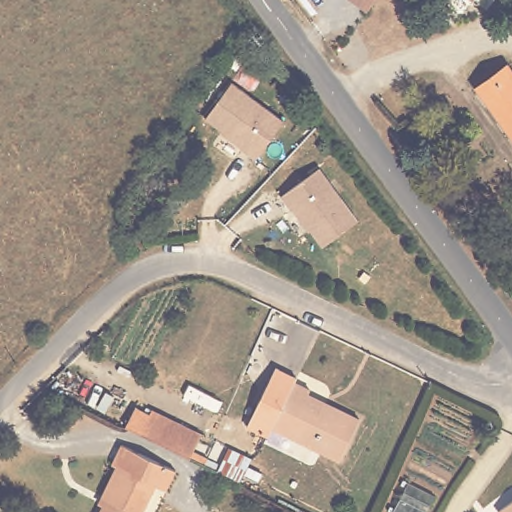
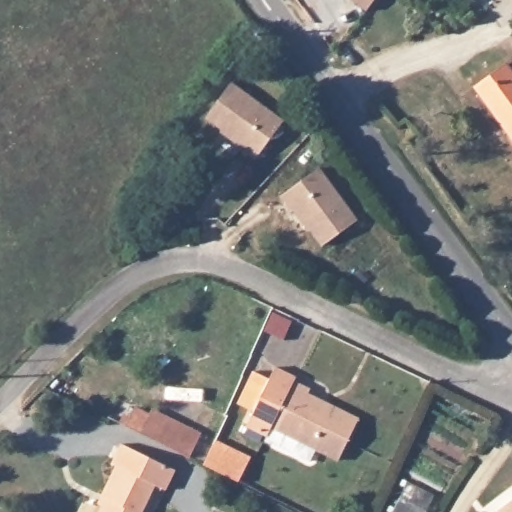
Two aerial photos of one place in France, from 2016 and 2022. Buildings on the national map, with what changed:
unchanged [(356,0),(378,0),(371,10),(356,0)]
unchanged [(473,90),(505,65),(512,73),(512,140),(473,90)]
unchanged [(283,113),(256,154),(241,144),(243,140),(204,115),(205,113),(228,78),(283,113)]
unchanged [(320,168),(359,223),(322,249),(295,211),(292,213),(280,196),(320,168)]
unchanged [(299,378),(315,389),(313,393),(363,418),(343,458),(274,423),(269,432),(250,423),(280,363),(302,374),(299,378)]
unchanged [(139,409),(151,415),(154,409),(207,435),(195,459),(150,436),(129,426),(139,409)]
unchanged [(107,480),(117,461),(113,459),(123,439),(174,466),(165,484),(157,480),(147,500),(107,480)]
unchanged [(421,490),(410,512),(388,512),(378,507),(394,476),(421,490)]
unchanged [(98,512),(107,494),(102,491),(107,480),(147,500),(141,512),(98,512)]
unchanged [(503,512),(499,506),(512,497),(512,512),(503,512)]

